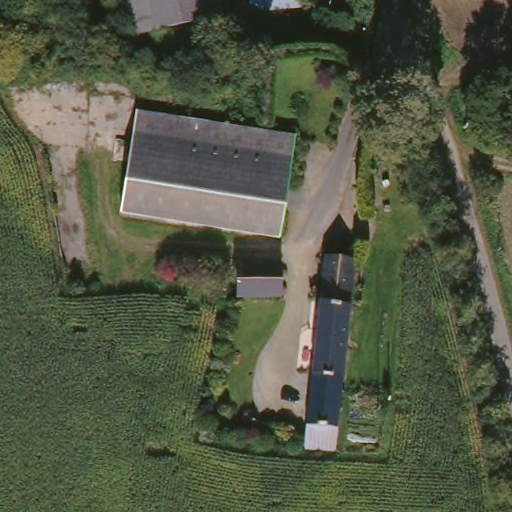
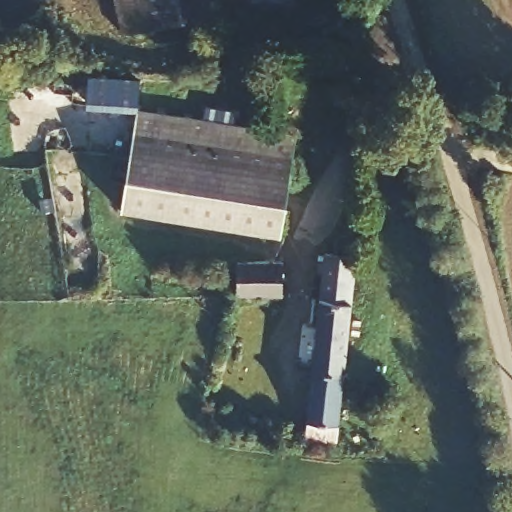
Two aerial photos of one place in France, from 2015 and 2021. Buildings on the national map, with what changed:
unchanged [(109,35),(103,0),(214,0),(217,20),(109,35)]
unchanged [(251,17),(250,0),(299,0),(299,12),(251,17)]
new [(88,77),(139,80),(138,112),(86,110),(88,77)]
unchanged [(278,241),(271,240),(116,208),(138,112),(222,128),(297,143),(290,177),(278,241)]
unchanged [(341,371),(313,369),(323,250),(346,251),(355,252),(351,296),(344,371),(341,371)]
unchanged [(260,302),(242,303),(237,303),(233,269),(274,266),(281,266),(284,301),(262,302),(260,302)]
unchanged [(306,442),(313,369),(341,371),(344,371),(344,376),(343,387),(341,397),(339,426),(346,426),(346,429),(345,444),(336,443),(306,442)]

